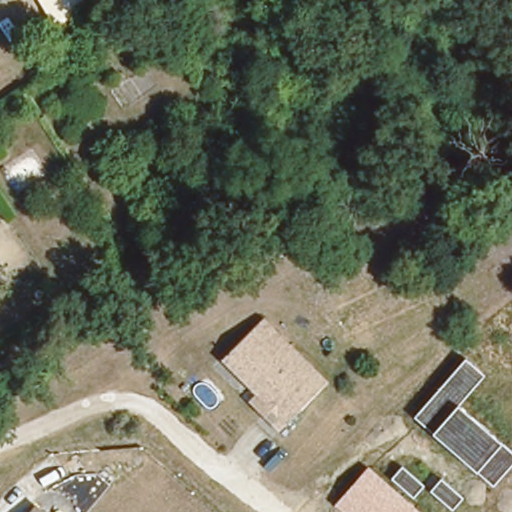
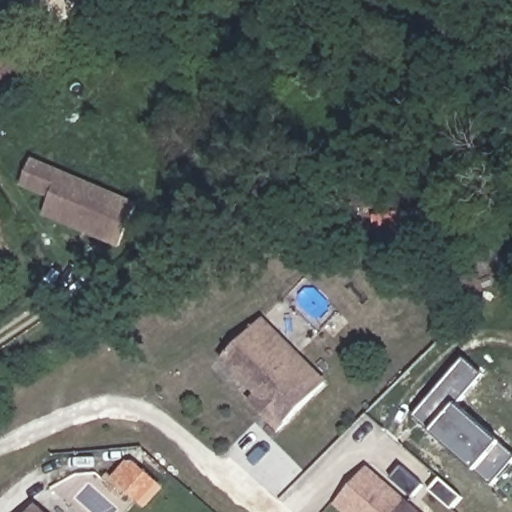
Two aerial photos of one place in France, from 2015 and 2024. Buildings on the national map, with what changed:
unchanged [(55,30),(36,0),(85,0),(90,8),(55,30)]
new [(120,249),(43,216),(50,200),(21,186),(33,159),(139,204),(120,249)]
unchanged [(273,435),(265,426),(257,418),(250,410),(243,404),(245,402),(251,395),(250,394),(244,388),(249,383),(245,378),(240,383),(235,378),(226,370),(219,362),(216,359),(221,354),(229,346),(237,338),(245,330),(254,322),(266,310),(294,339),(331,377),(273,435)]
unchanged [(493,486),(476,471),(432,433),(415,416),(465,358),(485,375),(458,405),(501,442),(512,452),(512,465),(493,486)]
unchanged [(335,505),(368,466),(421,512),(342,512),(335,505)]
unchanged [(32,512),(23,512),(27,508),(32,512)]

